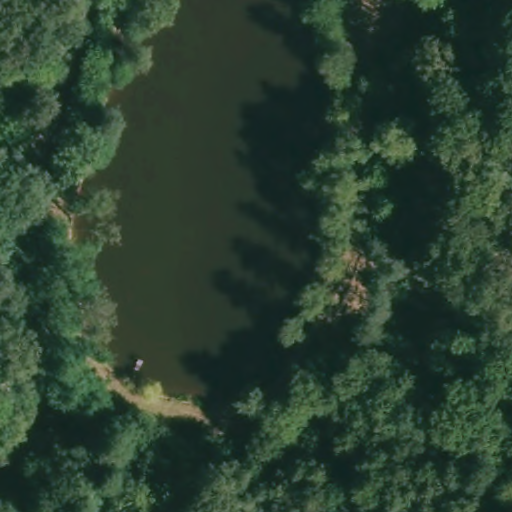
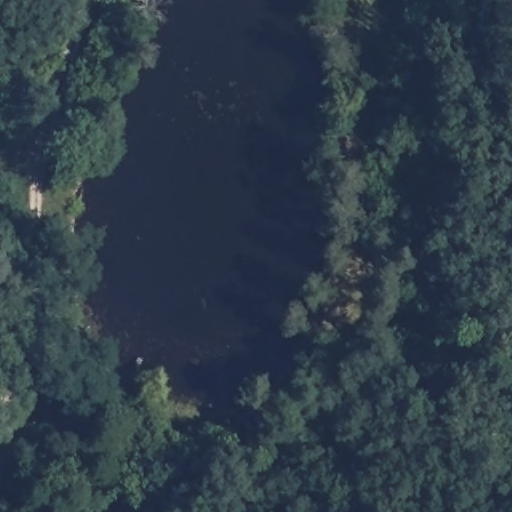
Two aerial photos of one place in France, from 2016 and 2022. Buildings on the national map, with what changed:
unchanged [(335,334),(355,343),(346,361),(327,351),(335,334)]

